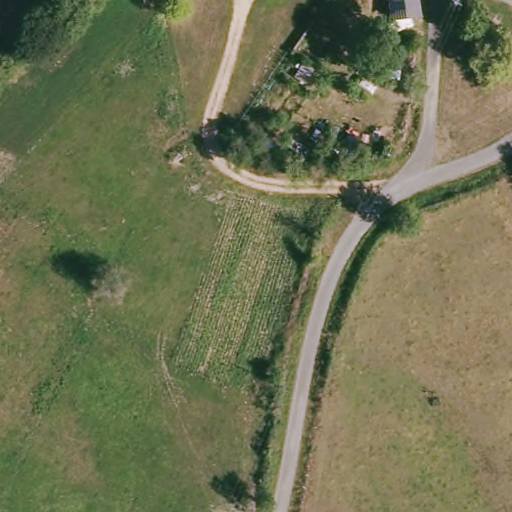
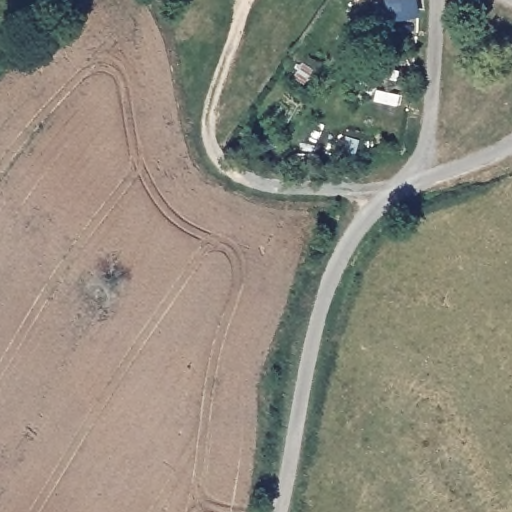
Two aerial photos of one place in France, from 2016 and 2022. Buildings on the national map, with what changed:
unchanged [(387,12),(384,0),(412,0),(413,10),(387,12)]

